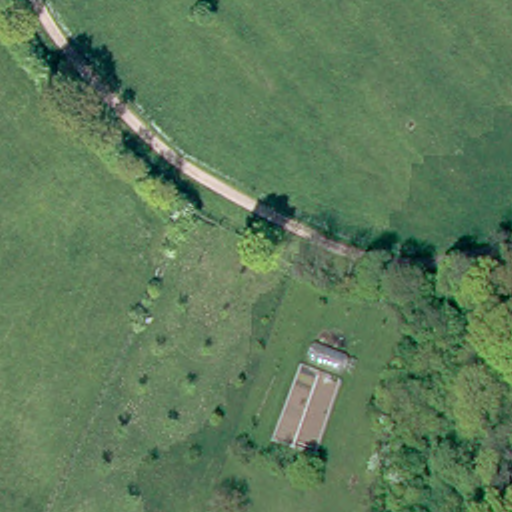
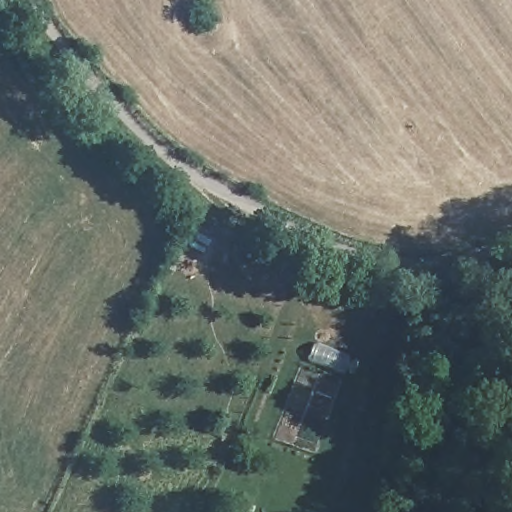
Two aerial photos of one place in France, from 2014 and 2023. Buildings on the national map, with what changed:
[]

